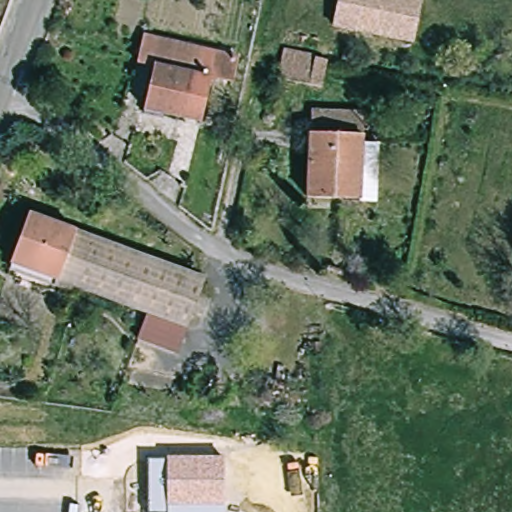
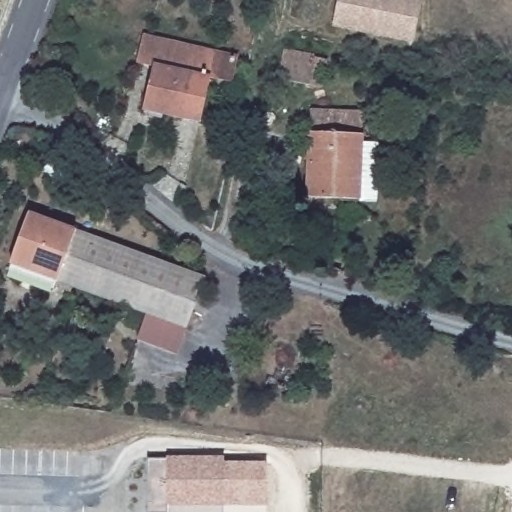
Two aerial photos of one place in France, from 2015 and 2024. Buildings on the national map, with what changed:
unchanged [(340,0),(422,0),(412,40),(334,20),(340,0)]
unchanged [(211,75),(203,117),(150,106),(158,65),(141,61),(146,35),(238,52),(234,79),(211,75)]
unchanged [(316,85),(288,78),(294,54),(323,61),(316,85)]
unchanged [(302,200),(305,112),(354,115),(351,201),(302,200)]
unchanged [(361,202),(351,201),(354,115),(366,115),(361,202)]
unchanged [(179,348),(136,333),(144,310),(16,262),(35,215),(204,275),(179,348)]
unchanged [(149,460),(168,460),(168,456),(223,458),(226,503),(225,512),(148,512),(149,460)]
new [(226,503),(223,462),(267,462),(266,505),(267,512),(225,512),(226,503)]

